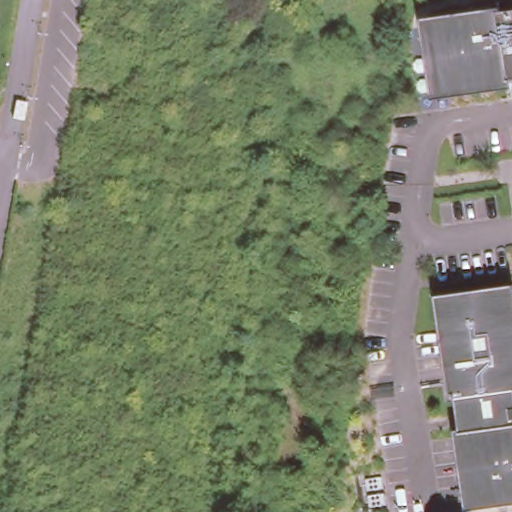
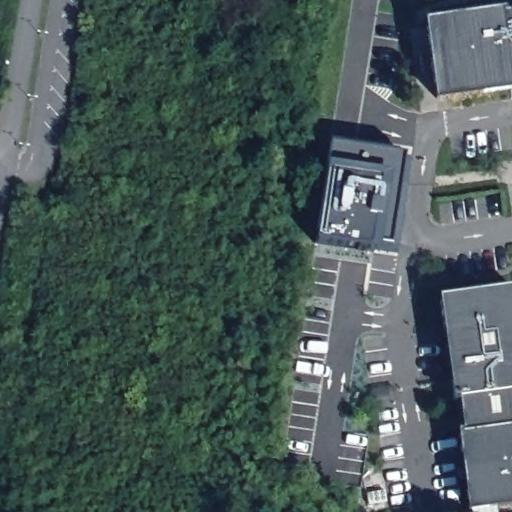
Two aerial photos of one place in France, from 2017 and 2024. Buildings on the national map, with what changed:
unchanged [(512,90),(435,103),(422,23),(495,11),(497,16),(512,14),(512,83),(510,83),(512,90)]
new [(396,149),(380,239),(365,236),(364,245),(305,234),(322,136),(396,149)]
unchanged [(455,436),(462,435),(457,401),(451,402),(435,299),(512,288),(512,506),(473,512),(466,512),(455,436)]

